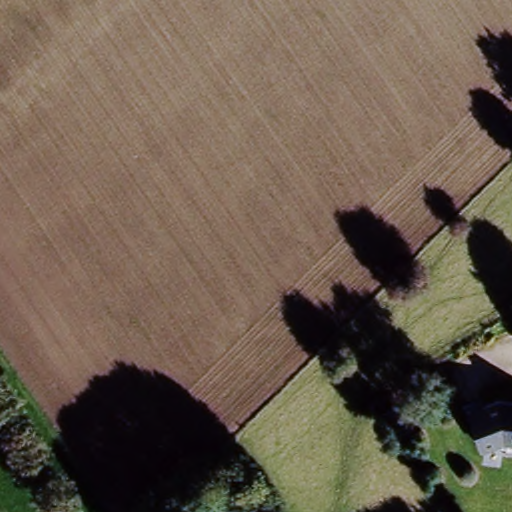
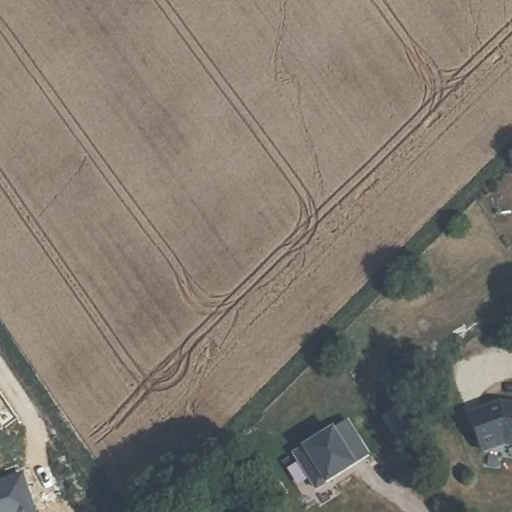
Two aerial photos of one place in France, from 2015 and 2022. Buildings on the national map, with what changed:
unchanged [(487,444),(471,409),(498,397),(512,398),(512,437),(504,436),(487,444)]
new [(356,465),(323,484),(315,490),(293,454),(301,448),(332,427),(356,465)]
new [(7,481),(6,476),(21,470),(36,512),(0,512),(0,483),(7,481)]
unchanged [(213,512),(205,512),(211,508),(213,512)]

